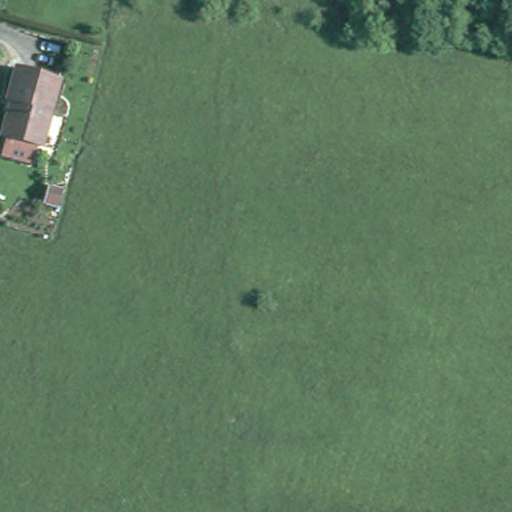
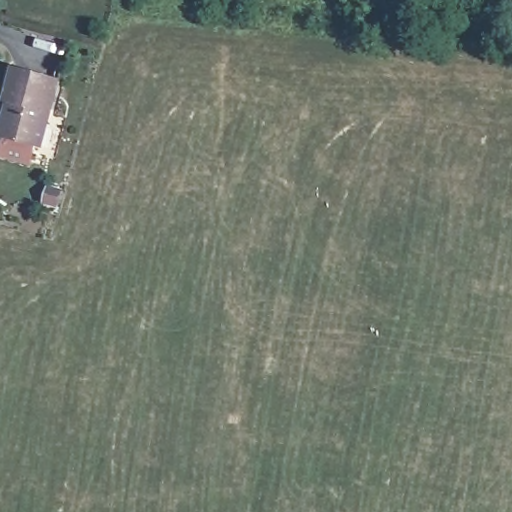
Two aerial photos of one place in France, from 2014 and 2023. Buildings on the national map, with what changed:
unchanged [(40,147),(2,137),(11,102),(7,101),(15,66),(58,78),(40,147)]

